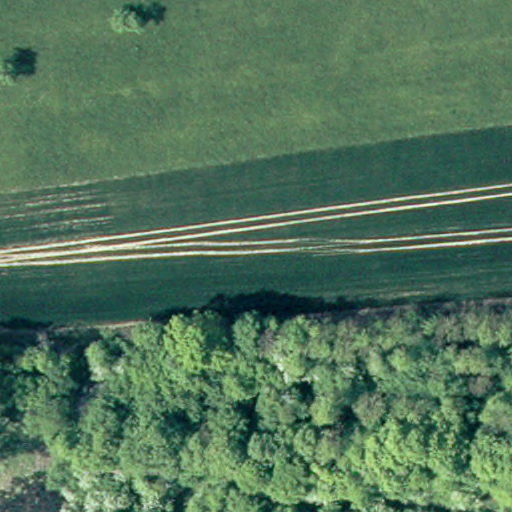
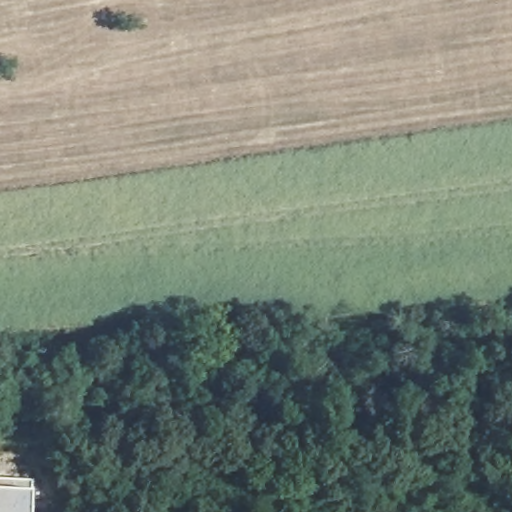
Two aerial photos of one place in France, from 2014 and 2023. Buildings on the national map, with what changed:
new [(33,488),(31,512),(0,512),(0,478),(34,480),(33,488)]

